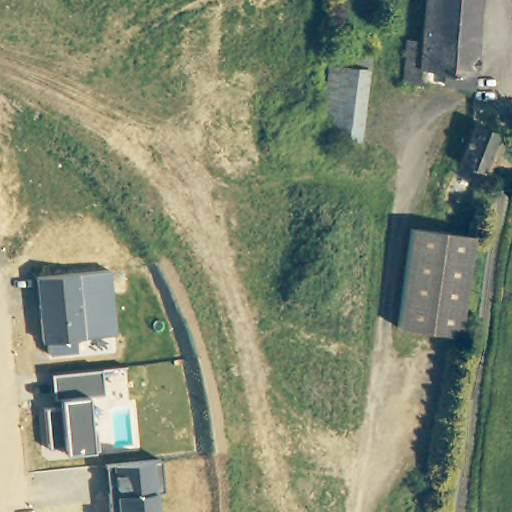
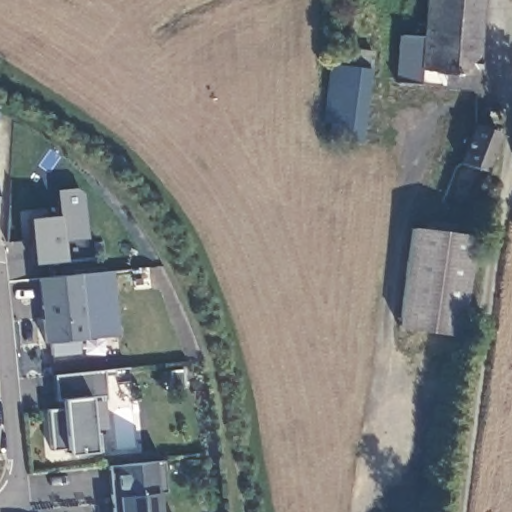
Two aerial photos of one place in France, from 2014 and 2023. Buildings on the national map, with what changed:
unchanged [(450,86),(451,70),(421,68),(420,83),(404,81),(407,39),(422,39),(426,0),(481,0),(474,89),(450,86)]
unchanged [(323,119),(330,63),(346,65),(348,48),(371,50),(369,68),(361,140),(330,136),(331,120),(323,119)]
unchanged [(500,133),(486,170),(461,161),(475,124),(500,133)]
new [(27,217),(55,214),(54,189),(74,187),(82,193),(87,237),(61,240),(63,260),(31,263),(27,217)]
unchanged [(471,235),(459,334),(399,327),(411,228),(471,235)]
unchanged [(78,274),(110,269),(117,335),(86,338),(75,340),(76,352),(49,354),(48,342),(42,343),(37,279),(78,274)]
unchanged [(100,370),(104,394),(87,397),(93,451),(67,454),(67,449),(51,449),(46,409),(56,408),(51,374),(100,370)]
unchanged [(153,461),(160,459),(165,492),(157,494),(159,512),(112,512),(106,464),(153,461)]

